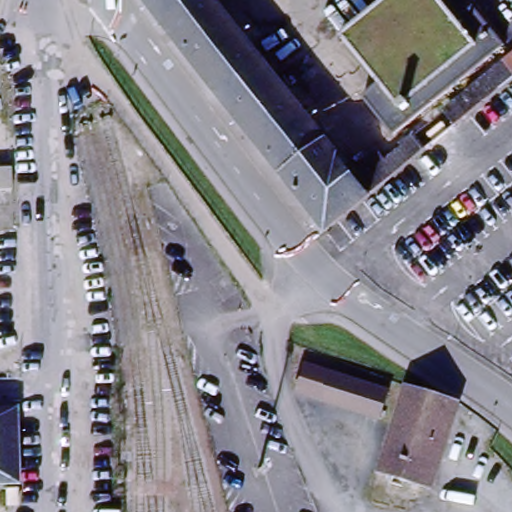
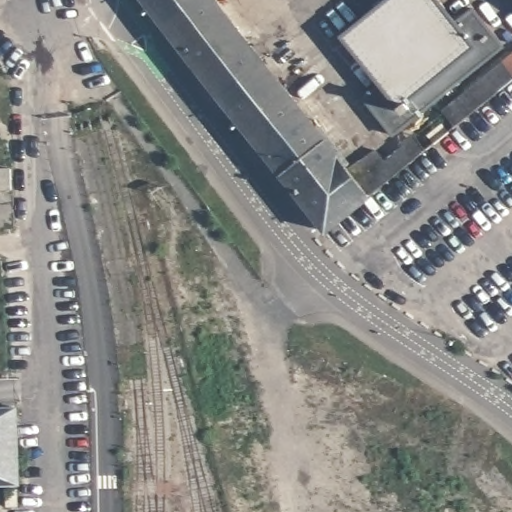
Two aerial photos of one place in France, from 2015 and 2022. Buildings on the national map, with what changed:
unchanged [(281,79),(299,65),(308,77),(290,91),(350,168),(358,179),(449,106),(512,55),(512,80),(325,230),(147,0),(220,0),(281,79)]
unchanged [(392,134),(363,96),(380,83),(340,34),(382,0),(441,0),(458,21),(475,8),(505,46),(441,96),(392,134)]
unchanged [(449,106),(358,179),(350,168),(392,134),(441,96),(449,106)]
demolished [(390,390),(381,418),(292,388),(301,360),(390,390)]
demolished [(450,432),(434,487),(375,469),(401,383),(460,400),(450,432)]
unchanged [(16,484),(0,484),(0,406),(16,406),(16,484)]

